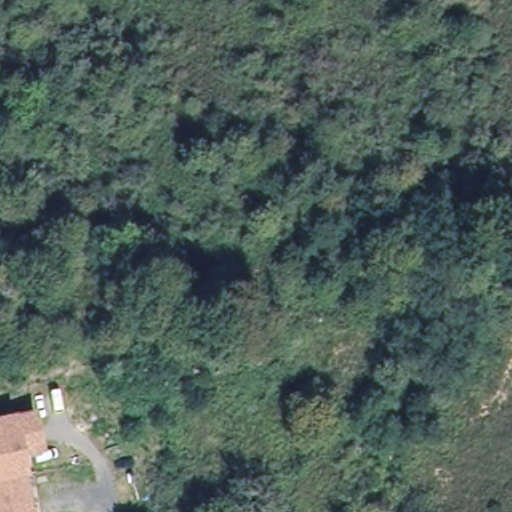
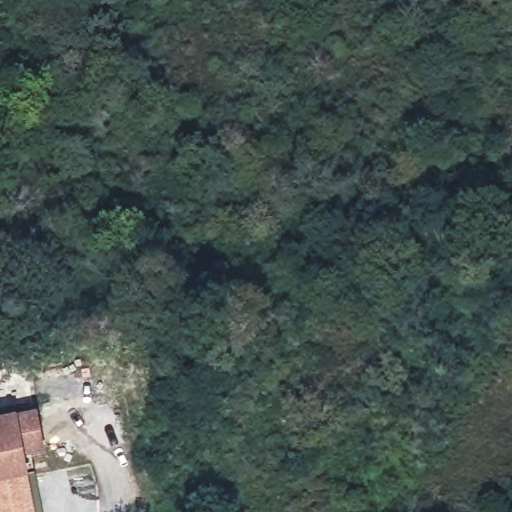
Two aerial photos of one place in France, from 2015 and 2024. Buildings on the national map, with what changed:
unchanged [(46,452),(26,456),(34,512),(0,512),(0,426),(41,420),(46,452)]

